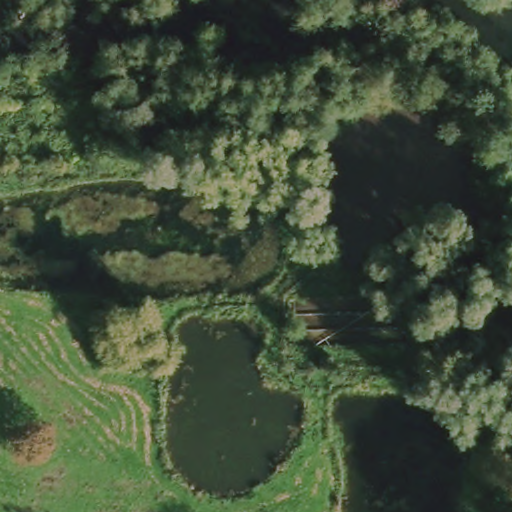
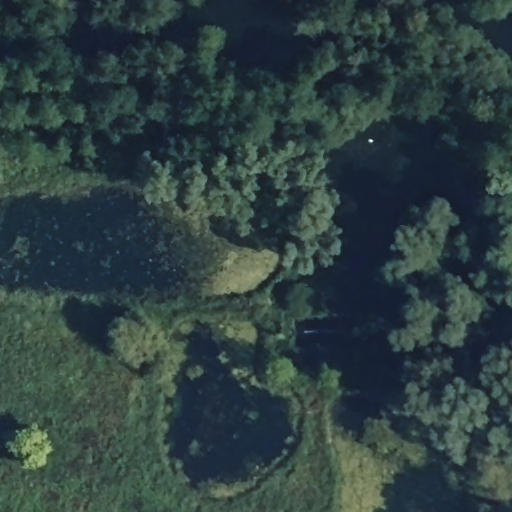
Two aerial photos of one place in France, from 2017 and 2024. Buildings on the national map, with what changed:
unchanged [(507,200),(512,200),(512,223),(507,223),(507,200)]
unchanged [(500,268),(500,298),(440,298),(440,268),(500,268)]

